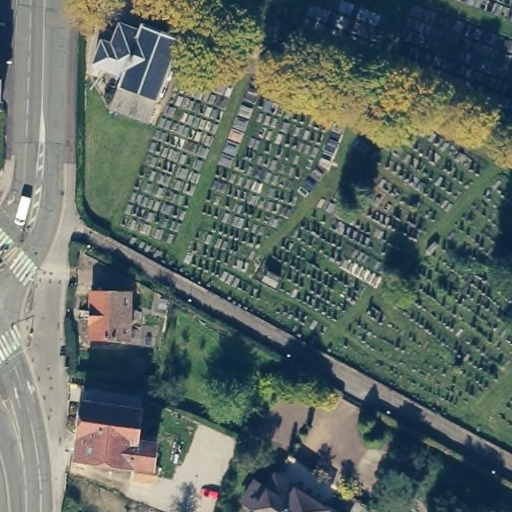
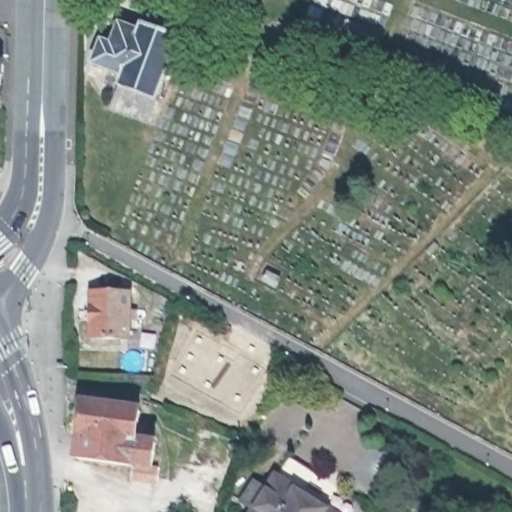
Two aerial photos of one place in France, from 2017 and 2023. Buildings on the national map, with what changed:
unchanged [(148,113),(110,99),(120,74),(124,65),(94,54),(102,31),(112,35),(120,14),(140,21),(142,14),(180,28),(157,90),(148,113)]
unchanged [(0,103),(0,55),(2,58),(1,103),(0,103)]
unchanged [(125,332),(86,330),(87,287),(126,289),(126,303),(130,305),(130,313),(125,314),(125,332)]
unchanged [(170,298),(165,317),(155,313),(160,295),(170,298)]
unchanged [(143,405),(142,418),(150,420),(149,433),(158,436),(155,462),(160,462),(156,491),(130,487),(131,459),(80,452),(81,428),(80,427),(85,397),(143,405)]
unchanged [(250,510),(238,502),(251,484),(262,492),(286,456),(355,501),(353,503),(348,512),(249,512),(250,510)]

